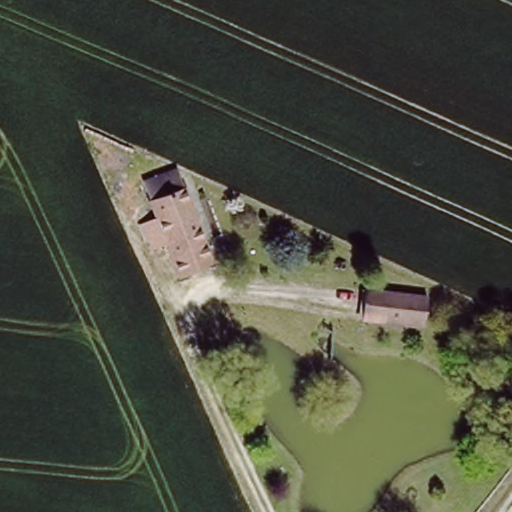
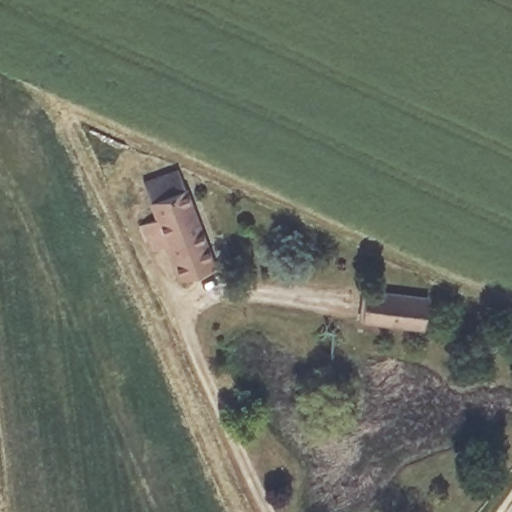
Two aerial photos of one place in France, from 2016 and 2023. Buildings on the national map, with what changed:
unchanged [(187,186),(218,263),(187,276),(174,246),(160,252),(155,239),(149,241),(143,227),(162,219),(155,200),(187,186)]
unchanged [(428,292),(426,324),(362,320),(364,288),(428,292)]

